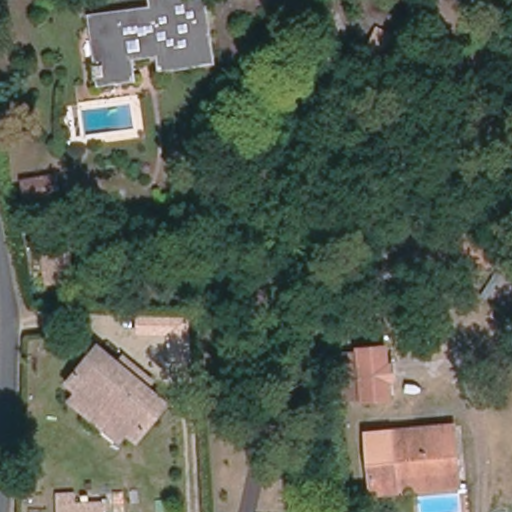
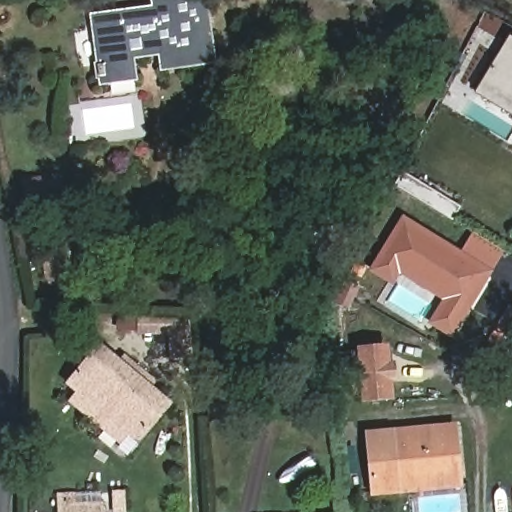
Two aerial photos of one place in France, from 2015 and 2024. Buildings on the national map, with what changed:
unchanged [(215,57),(164,64),(162,48),(134,52),(136,73),(102,78),(93,11),(155,3),(154,0),(207,0),(215,57)]
unchanged [(372,55),(383,25),(422,39),(411,70),(372,55)]
new [(498,56),(507,61),(512,52),(512,100),(482,81),(498,56)]
new [(401,273),(393,285),(368,271),(403,216),(462,251),(472,232),(506,250),(493,271),(452,338),(428,323),(442,299),(401,273)]
unchanged [(75,282),(47,286),(43,261),(71,257),(75,282)]
new [(170,359),(170,334),(117,331),(117,316),(190,320),(192,359),(170,359)]
unchanged [(174,404),(144,440),(119,419),(111,428),(94,413),(101,404),(76,383),(106,347),(174,404)]
unchanged [(387,347),(392,398),(366,400),(361,349),(387,347)]
unchanged [(455,427),(459,472),(396,478),(397,491),(375,493),(370,434),(455,427)]
unchanged [(81,494),(81,505),(109,503),(109,512),(65,512),(65,495),(81,494)]

